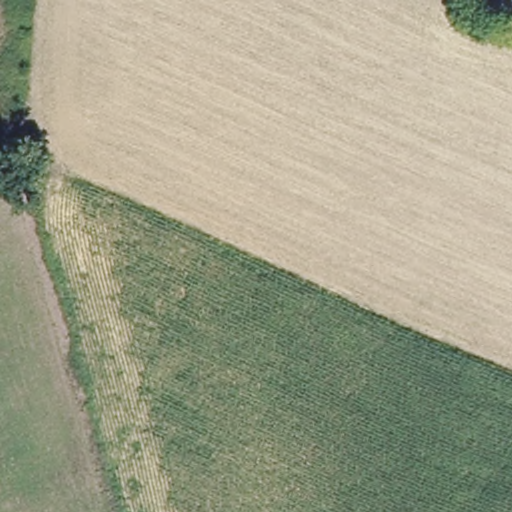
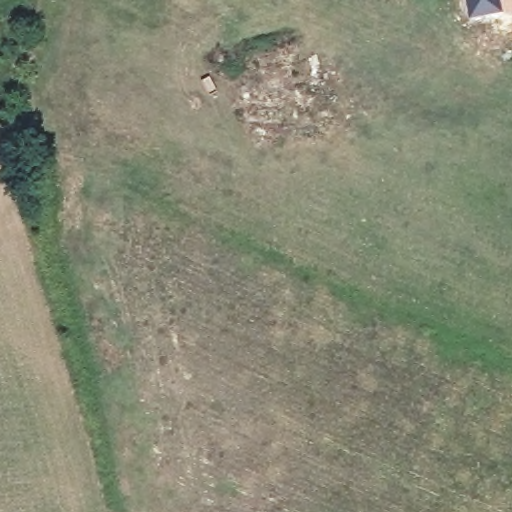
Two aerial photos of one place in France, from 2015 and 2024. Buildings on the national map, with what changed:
new [(468,20),(464,0),(512,0),(512,12),(468,20)]

